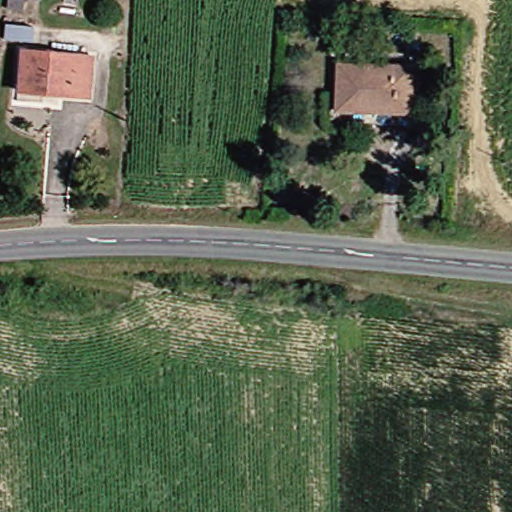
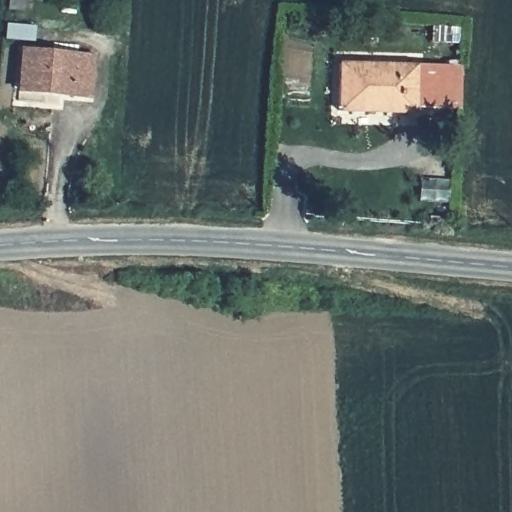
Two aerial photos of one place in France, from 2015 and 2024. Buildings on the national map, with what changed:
unchanged [(35,0),(39,0),(39,1),(35,0)]
unchanged [(18,93),(19,54),(32,54),(85,56),(83,95),(18,93)]
unchanged [(337,64),(414,70),(412,114),(333,108),(337,64)]
new [(414,70),(459,73),(458,113),(412,114),(414,70)]

